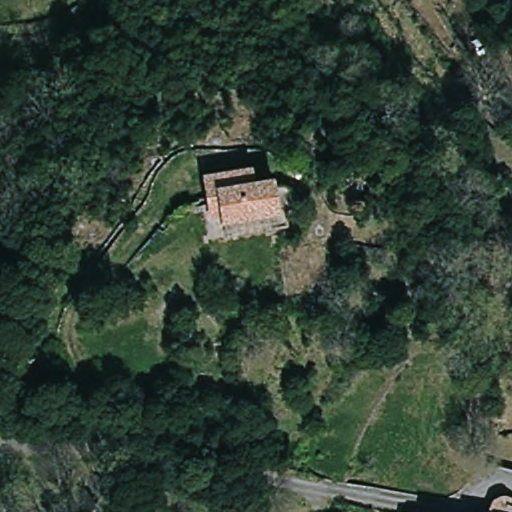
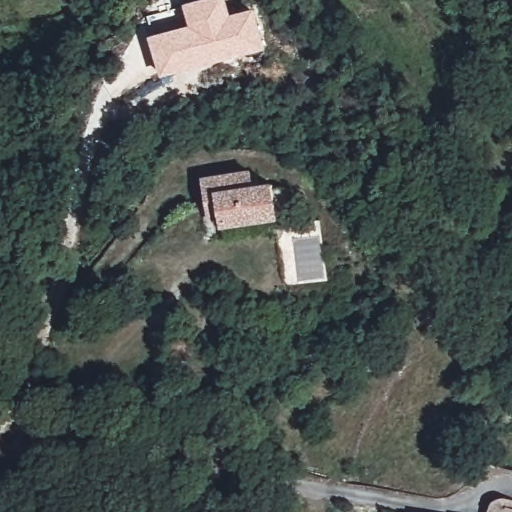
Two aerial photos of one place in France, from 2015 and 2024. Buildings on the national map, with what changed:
new [(267,48),(160,76),(149,36),(190,24),(184,3),(197,0),(228,0),(232,14),(256,8),(267,48)]
unchanged [(203,209),(198,181),(248,173),(251,188),(273,185),(279,219),(219,229),(218,223),(205,225),(203,209)]
unchanged [(512,505),(512,512),(492,512),(502,503),(512,505)]

